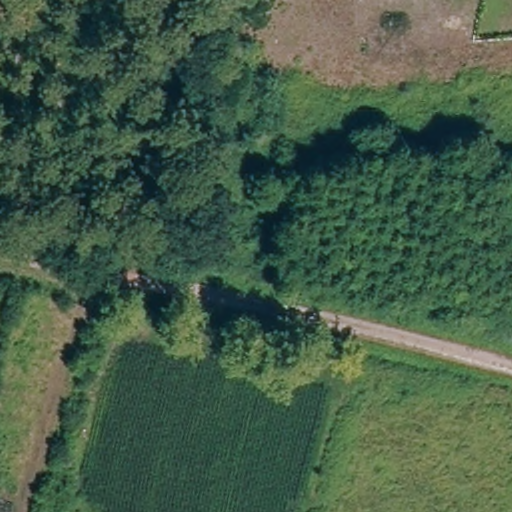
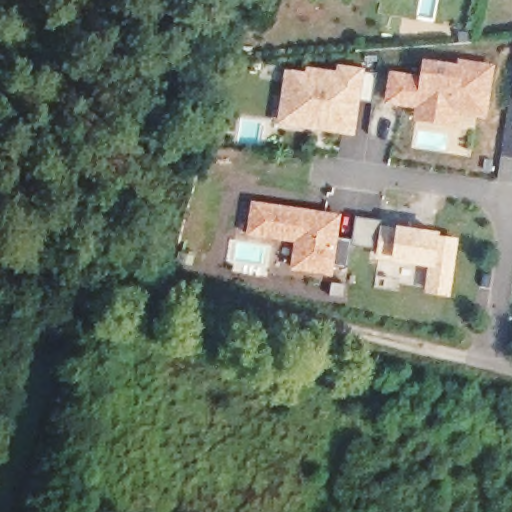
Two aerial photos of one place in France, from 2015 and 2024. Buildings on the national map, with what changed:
new [(421,74),(423,59),(458,64),(459,58),(495,63),(488,118),(456,114),(455,126),(413,122),(415,106),(386,104),(390,70),(421,74)]
new [(306,71),(307,66),(336,70),(337,65),(377,71),(373,102),(361,100),(355,136),(278,126),(285,69),(306,71)]
new [(341,215),(339,235),(356,237),(358,219),(399,223),(400,226),(440,231),(440,237),(458,241),(450,297),(425,293),(428,267),(392,263),(376,261),(377,250),(350,246),(348,266),(335,265),(334,277),(290,271),(294,243),(247,236),(252,201),(341,215)]

